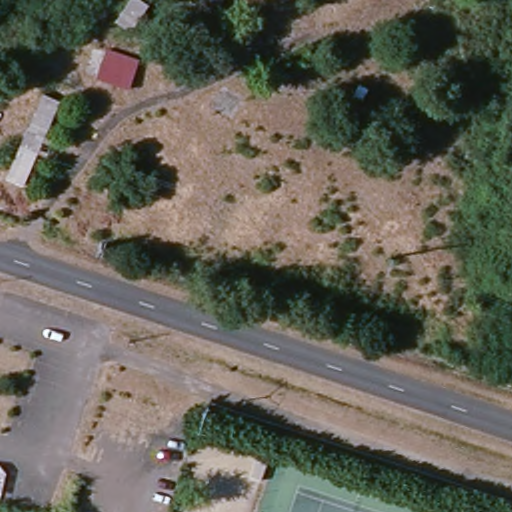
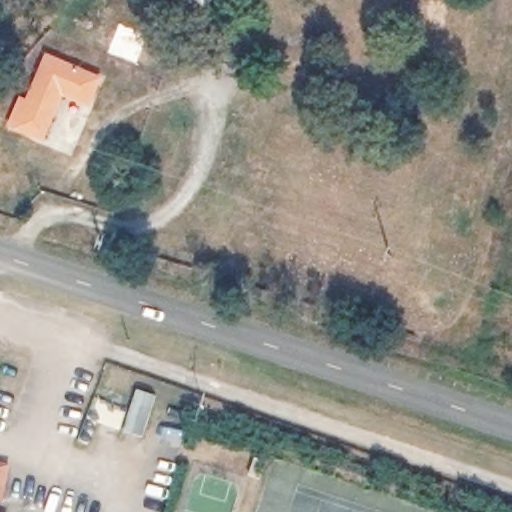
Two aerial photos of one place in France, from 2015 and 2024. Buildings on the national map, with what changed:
demolished [(79,74),(88,46),(138,61),(129,90),(79,74)]
new [(19,95),(24,97),(44,52),(101,77),(89,107),(63,97),(42,142),(4,127),(19,95)]
demolished [(44,95),(64,102),(24,191),(7,183),(44,95)]
new [(4,502),(0,501),(0,461),(13,463),(4,502)]

